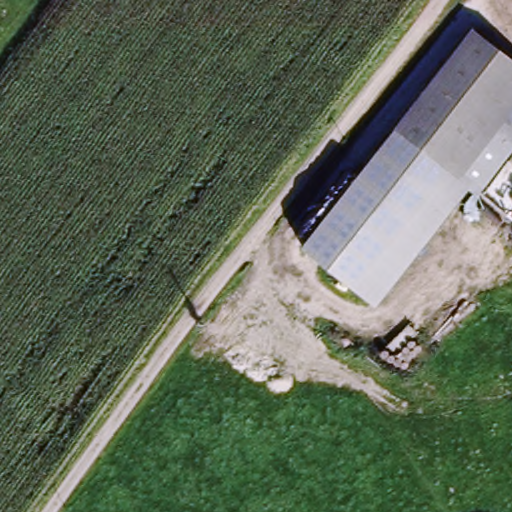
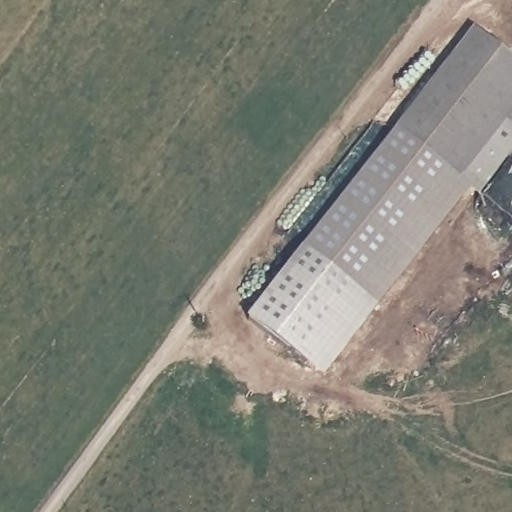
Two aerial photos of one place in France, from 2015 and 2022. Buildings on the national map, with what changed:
unchanged [(398,135),(475,36),(512,65),(512,109),(456,180),(398,135)]
unchanged [(456,180),(512,109),(512,151),(475,197),(470,192),(374,311),(300,253),(393,131),(398,135),(424,155),(456,180)]
new [(374,311),(321,378),(246,320),(300,253),(374,311)]

